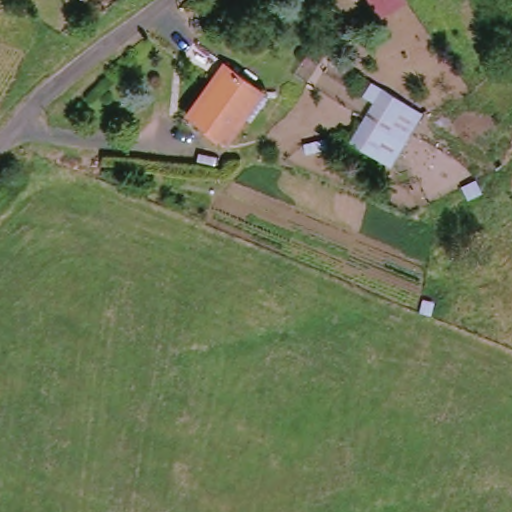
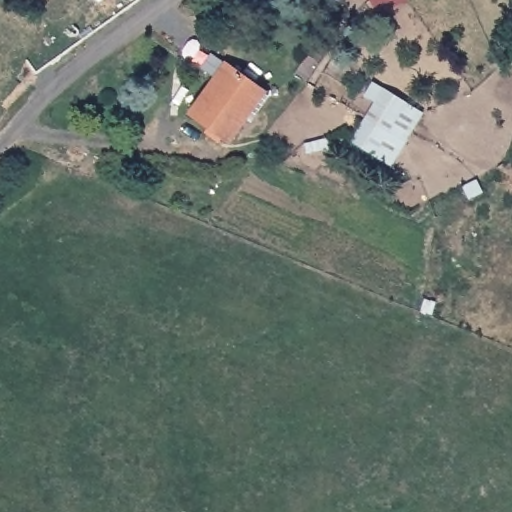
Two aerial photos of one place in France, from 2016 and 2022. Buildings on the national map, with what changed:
unchanged [(400,1),(402,4),(376,19),(365,0),(400,0),(400,1)]
unchanged [(188,112),(225,63),(263,92),(226,140),(188,112)]
unchanged [(347,142),(371,102),(359,96),(367,81),(382,88),(419,116),(390,167),(347,142)]

